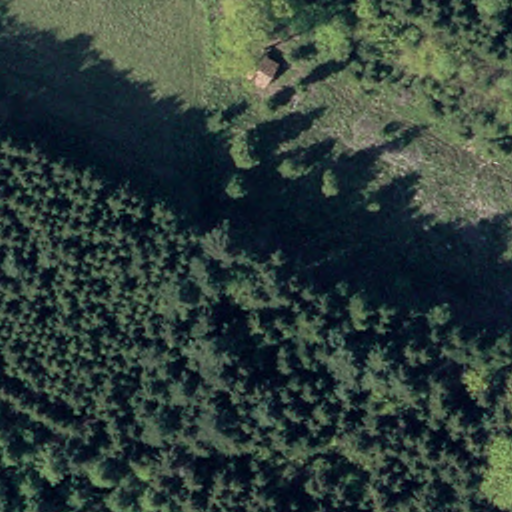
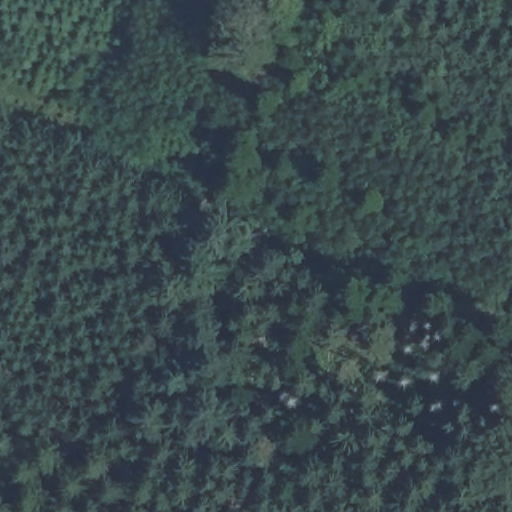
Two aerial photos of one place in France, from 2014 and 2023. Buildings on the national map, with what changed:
unchanged [(250,12),(243,24),(232,16),(239,4),(250,12)]
unchanged [(261,55),(276,65),(265,86),(249,76),(261,55)]

